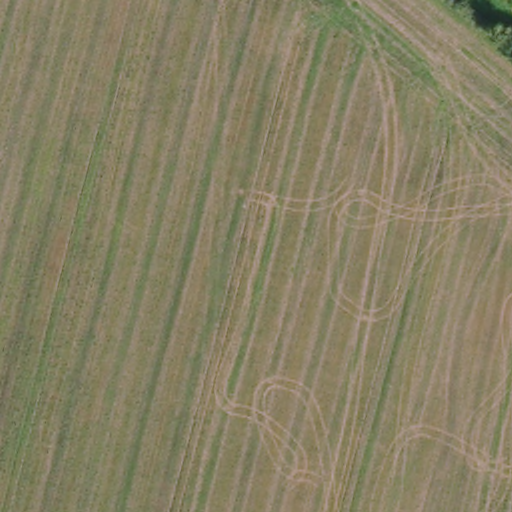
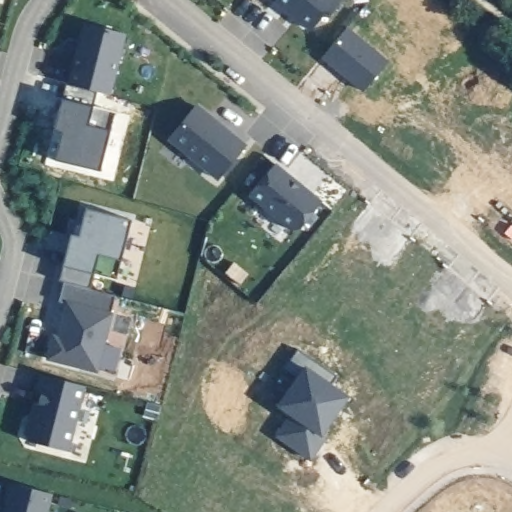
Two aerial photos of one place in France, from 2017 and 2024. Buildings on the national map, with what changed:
new [(269,0),(273,0),(271,2),(269,0)]
new [(273,0),(340,0),(327,16),(321,15),(310,28),(286,9),(284,12),(271,2),(273,0)]
new [(76,51),(78,52),(80,41),(78,40),(83,22),(124,32),(108,94),(67,83),(76,51)]
new [(389,62),(364,93),(321,59),(347,28),(389,62)]
new [(96,91),(92,105),(114,110),(99,171),(53,159),(60,132),(52,129),(65,83),(96,91)]
new [(217,177),(168,137),(195,104),(244,144),(217,177)]
new [(320,201),(295,232),(248,194),(274,162),(296,180),(294,183),(300,188),(302,185),(320,201)]
new [(70,233),(78,235),(85,207),(130,218),(115,279),(92,273),(89,288),(58,280),(70,233)]
new [(115,294),(95,370),(47,357),(53,335),(57,336),(66,302),(58,301),(63,281),(115,294)]
new [(334,375),(328,382),(349,396),(323,434),(327,436),(311,461),(274,437),(288,415),(277,407),(298,377),(284,368),(296,350),(334,375)]
new [(34,417),(41,391),(35,389),(40,373),(83,384),(67,449),(29,440),(25,433),(28,421),(32,403),(37,405),(34,417)]
new [(45,512),(7,512),(9,502),(5,501),(9,481),(50,492),(45,512)]

